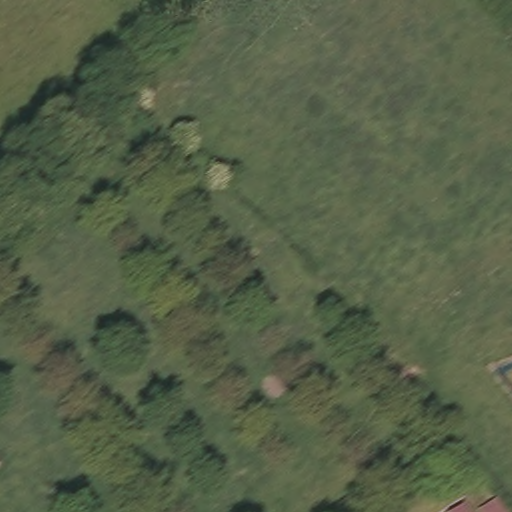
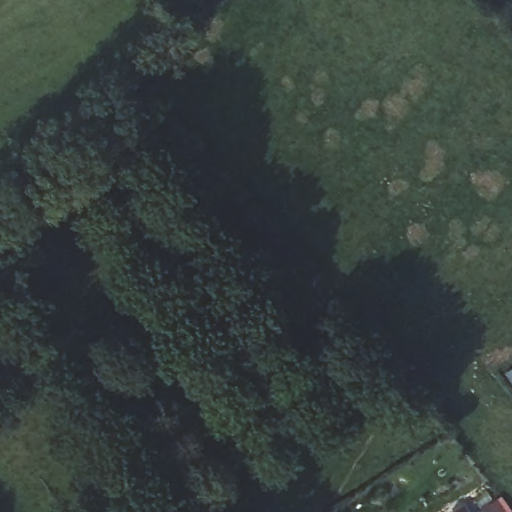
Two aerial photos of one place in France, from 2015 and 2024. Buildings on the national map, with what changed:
unchanged [(476,512),(456,512),(453,508),(467,498),(476,512)]
unchanged [(496,498),(505,512),(489,512),(485,505),(496,498)]

